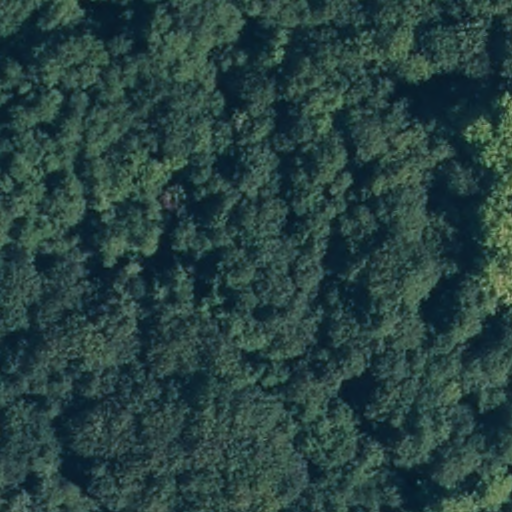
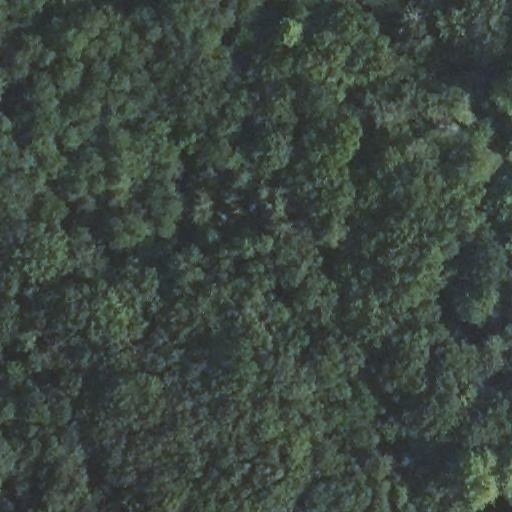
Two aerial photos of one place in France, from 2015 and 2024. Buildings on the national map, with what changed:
unchanged [(493,75),(482,51),(509,38),(512,45),(512,67),(493,75)]

